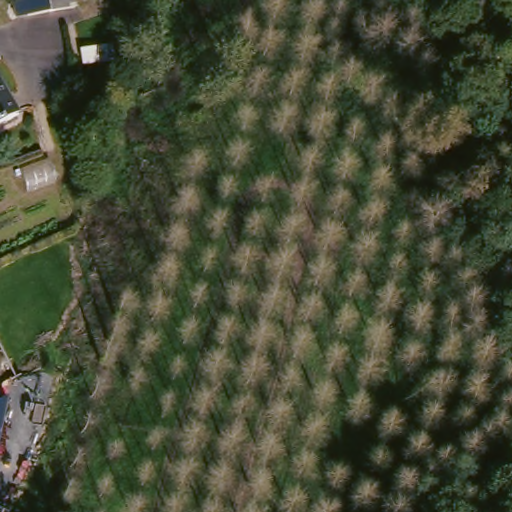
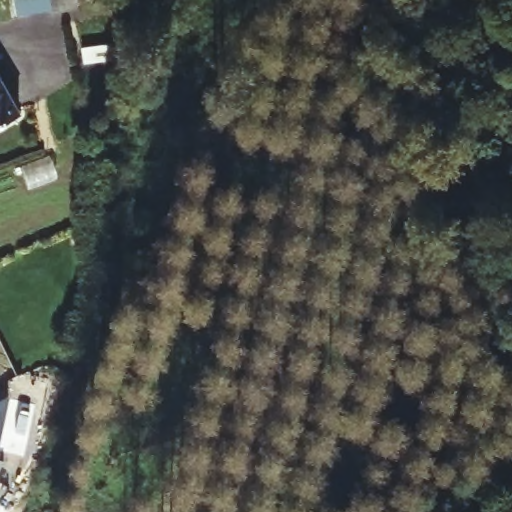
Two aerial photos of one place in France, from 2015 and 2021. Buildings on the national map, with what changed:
unchanged [(0,126),(0,82),(19,115),(0,126)]

